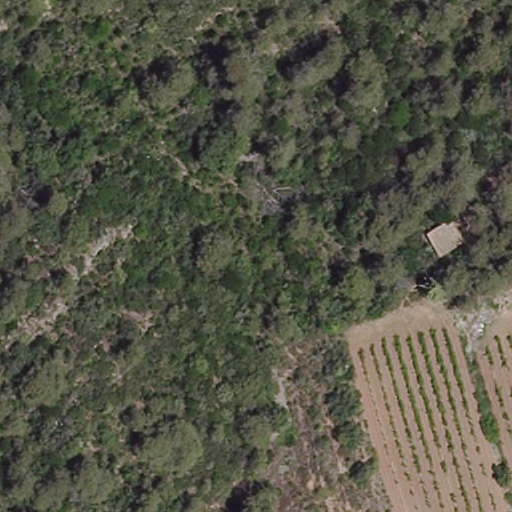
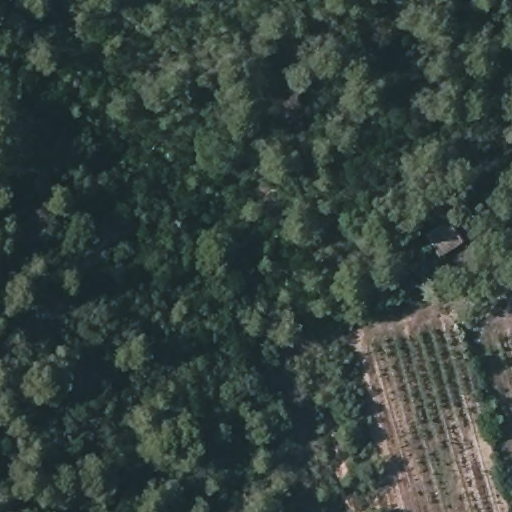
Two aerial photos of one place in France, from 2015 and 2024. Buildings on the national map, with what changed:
unchanged [(427,234),(457,219),(466,241),(439,255),(427,234)]

